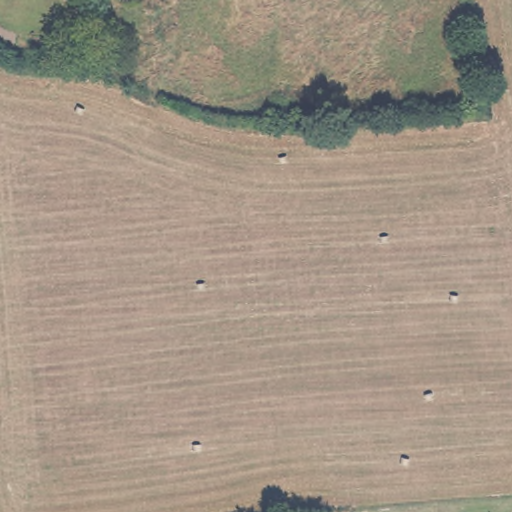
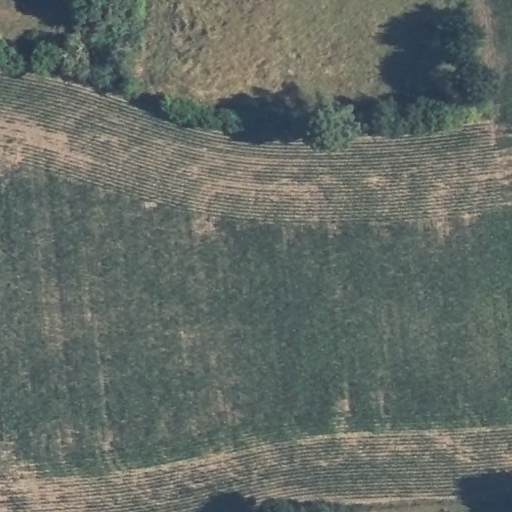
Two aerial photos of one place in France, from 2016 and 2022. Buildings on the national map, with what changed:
[]

